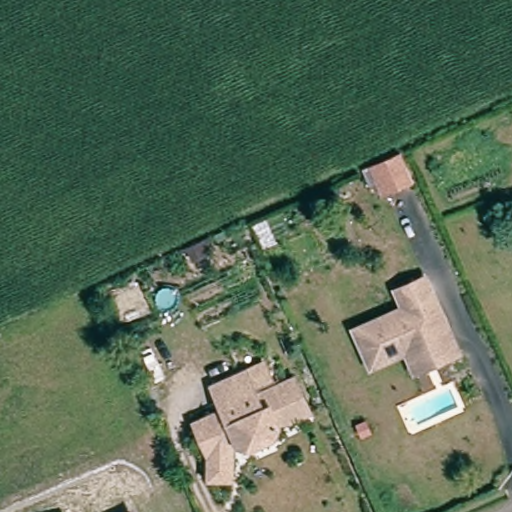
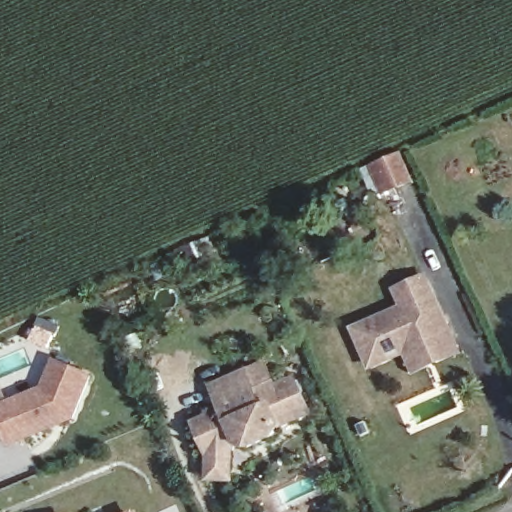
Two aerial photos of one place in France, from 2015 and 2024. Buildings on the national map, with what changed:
unchanged [(401,153),(414,181),(386,194),(372,166),(401,153)]
unchanged [(423,370),(419,360),(414,349),(378,363),(364,327),(414,306),(406,287),(434,276),(456,331),(464,353),(423,370)]
new [(0,405),(41,386),(52,359),(94,374),(75,421),(8,448),(0,429),(0,405)]
unchanged [(201,427),(231,414),(220,390),(252,376),(263,400),(301,382),(316,415),(285,429),(281,439),(256,451),(246,447),(244,442),(237,445),(239,448),(238,449),(238,483),(217,483),(217,464),(201,427)]
unchanged [(134,512),(132,512),(133,511),(134,512)]

